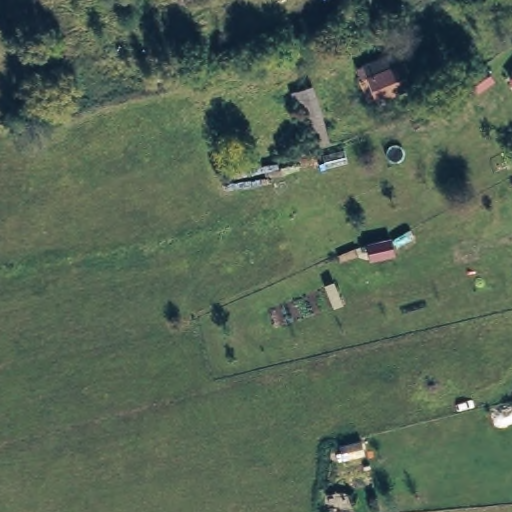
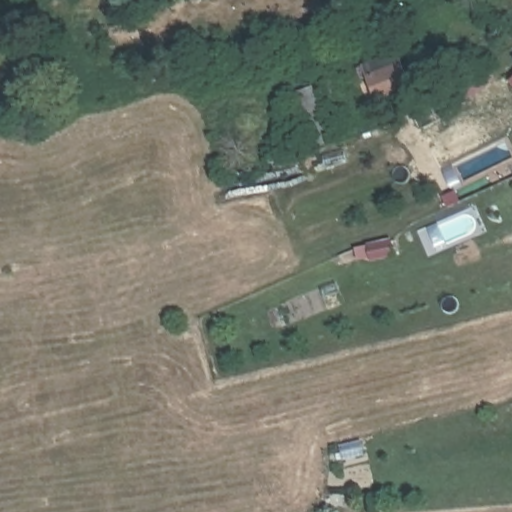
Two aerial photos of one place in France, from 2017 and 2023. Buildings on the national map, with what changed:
unchanged [(399,51),(410,83),(369,99),(359,72),(362,71),(359,65),(399,51)]
unchanged [(312,138),(307,123),(300,103),(297,104),(295,98),(314,91),(322,118),(327,133),(312,138)]

